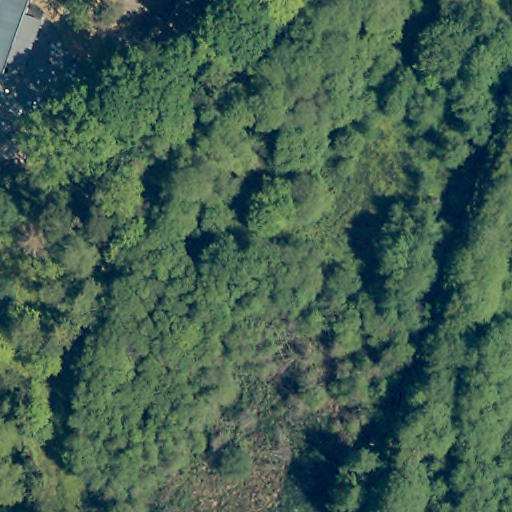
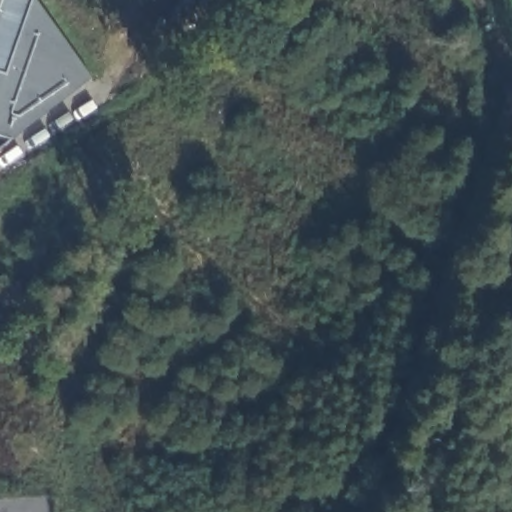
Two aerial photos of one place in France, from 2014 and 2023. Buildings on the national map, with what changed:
unchanged [(4,68),(0,67),(0,0),(27,0),(4,68)]
new [(0,135),(0,67),(4,68),(27,0),(35,0),(92,79),(10,139),(0,135)]
unchanged [(151,35),(161,20),(175,26),(190,0),(227,0),(241,7),(188,59),(151,35)]

